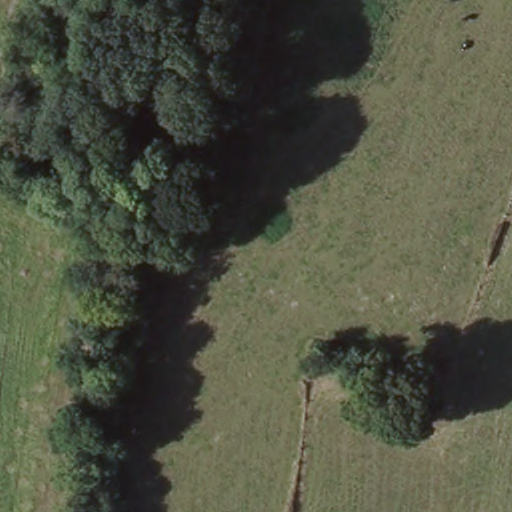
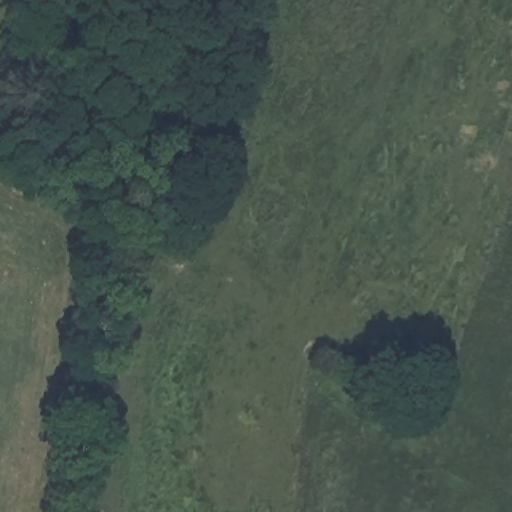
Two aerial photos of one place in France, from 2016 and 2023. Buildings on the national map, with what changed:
[]

